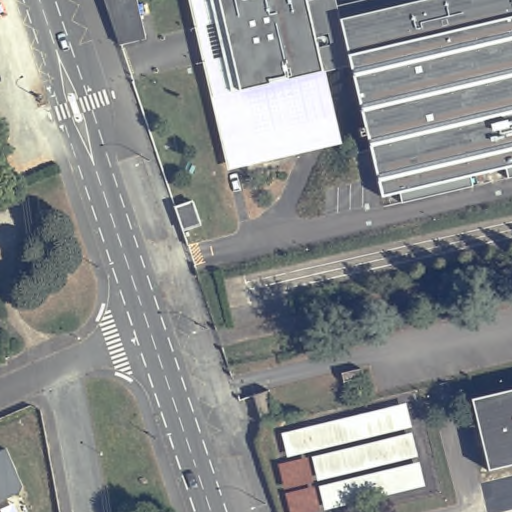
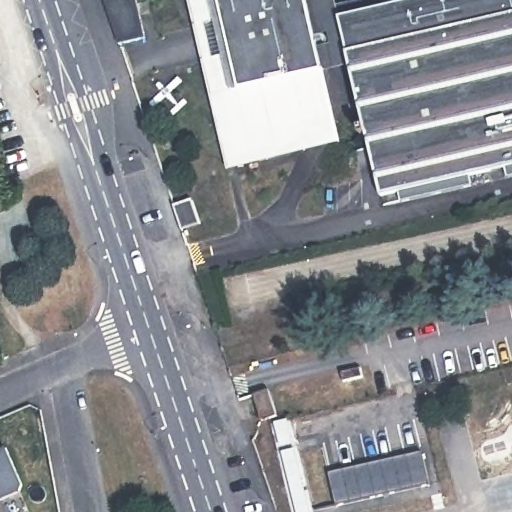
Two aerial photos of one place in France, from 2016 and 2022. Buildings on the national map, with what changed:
unchanged [(119,43),(103,0),(137,0),(146,37),(119,43)]
unchanged [(228,174),(187,0),(306,0),(342,150),(228,174)]
unchanged [(345,15),(407,0),(512,0),(512,163),(388,192),(345,15)]
unchanged [(186,223),(180,205),(198,199),(205,217),(186,223)]
unchanged [(337,372),(356,368),(358,377),(339,382),(337,372)]
demolished [(472,399),(512,389),(512,465),(489,471),(472,399)]
unchanged [(258,422),(248,396),(263,390),(272,417),(258,422)]
unchanged [(276,433),(401,403),(407,427),(282,457),(276,433)]
unchanged [(307,457),(407,432),(413,456),(312,481),(307,457)]
unchanged [(273,464),(303,457),(309,482),(279,490),(273,464)]
unchanged [(314,486),(415,462),(420,486),(320,510),(314,486)]
unchanged [(281,493),(310,486),(316,511),(312,512),(285,512),(281,493)]
unchanged [(2,505),(0,506),(0,501),(2,505)]

